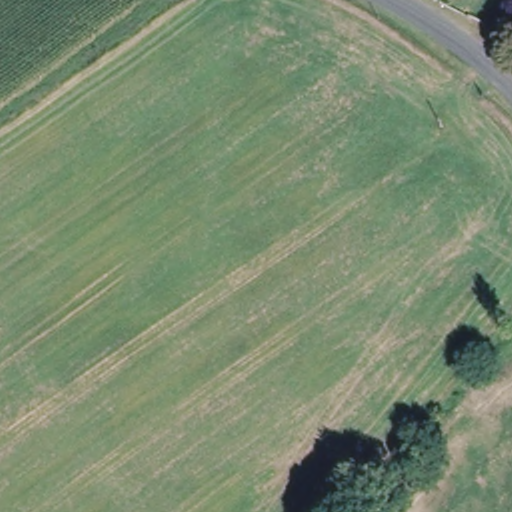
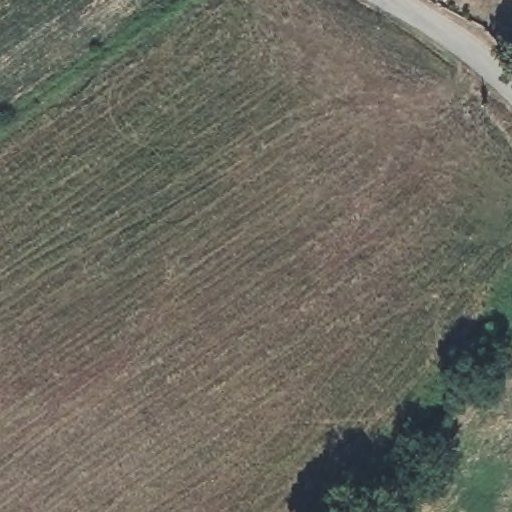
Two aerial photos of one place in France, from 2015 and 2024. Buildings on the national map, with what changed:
[]

